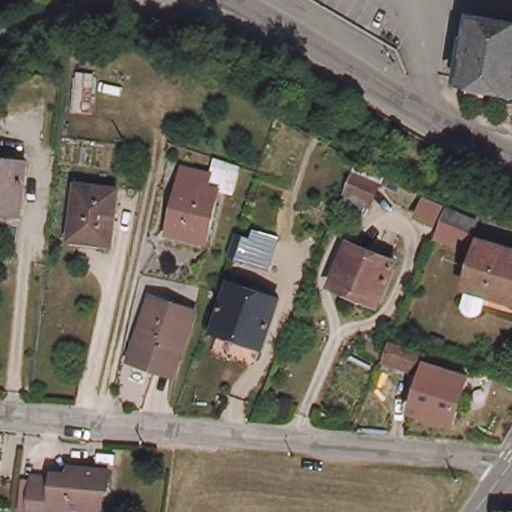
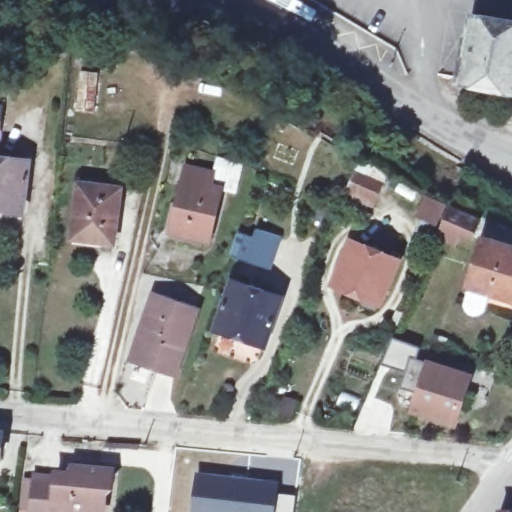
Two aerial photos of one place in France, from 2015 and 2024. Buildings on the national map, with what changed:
unchanged [(457,82),(460,68),(472,3),(512,11),(512,92),(457,82)]
unchanged [(0,122),(0,102),(3,102),(0,122)]
unchanged [(0,152),(25,155),(18,203),(0,201),(0,152)]
unchanged [(234,194),(224,192),(210,243),(169,232),(190,163),(212,169),(216,154),(244,165),(234,194)]
unchanged [(72,227),(78,172),(117,178),(112,232),(72,227)]
unchanged [(345,193),(355,173),(378,183),(371,203),(345,193)]
unchanged [(483,216),(477,230),(462,224),(458,236),(439,227),(450,201),(483,216)]
unchanged [(470,278),(485,231),(512,239),(512,291),(492,285),(487,303),(486,304),(484,306),(482,307),(479,308),(477,308),(474,307),(472,306),(470,304),(468,302),(467,299),(467,296),(473,279),(470,278)]
unchanged [(278,241),(268,270),(247,263),(228,257),(235,237),(252,243),(254,233),(278,241)]
unchanged [(332,272),(352,235),(398,260),(378,297),(332,272)]
unchanged [(217,322),(232,276),(278,291),(263,338),(217,322)]
unchanged [(134,351),(155,290),(194,303),(173,366),(134,351)]
unchanged [(425,347),(418,362),(402,356),(397,364),(380,358),(390,333),(425,347)]
unchanged [(413,401),(430,355),(471,370),(457,414),(413,401)]
unchanged [(0,455),(0,429),(3,429),(0,455)]
unchanged [(35,470),(54,473),(56,467),(70,468),(73,462),(108,466),(107,483),(102,483),(100,498),(70,495),(67,499),(67,512),(31,512),(35,470)]
new [(195,469),(280,479),(276,512),(189,512),(195,469)]
unchanged [(512,510),(512,512),(488,512),(487,511),(512,510)]

